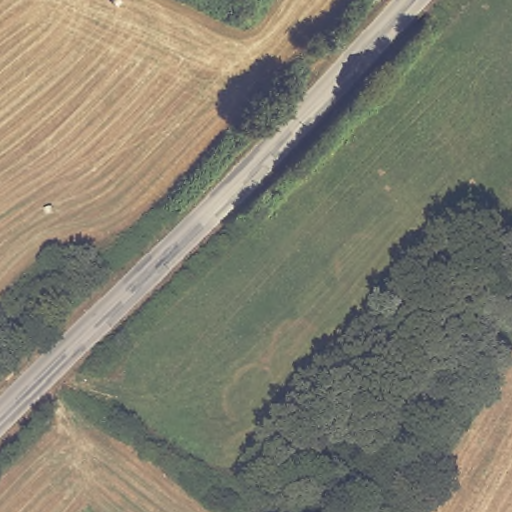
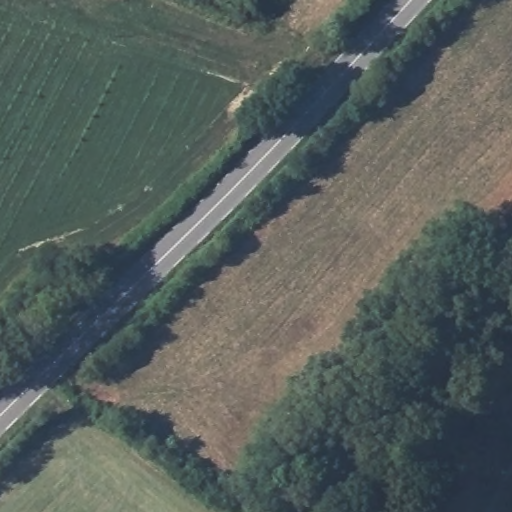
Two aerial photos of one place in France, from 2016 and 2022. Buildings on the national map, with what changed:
unchanged [(512,225),(512,237),(510,241),(491,226),(498,215),(512,225)]

